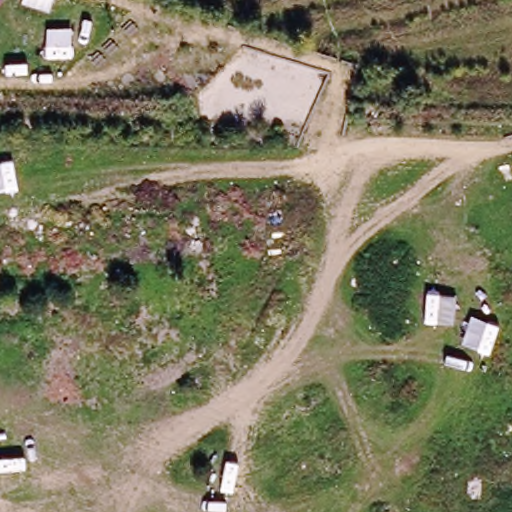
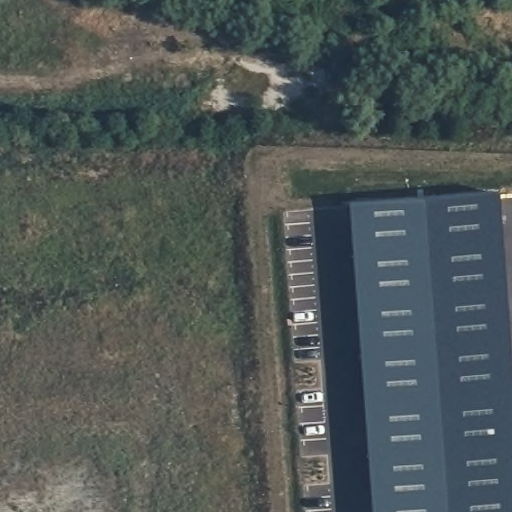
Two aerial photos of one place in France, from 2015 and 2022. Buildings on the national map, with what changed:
new [(512,309),(512,512),(377,512),(352,197),(502,187),(512,309)]

